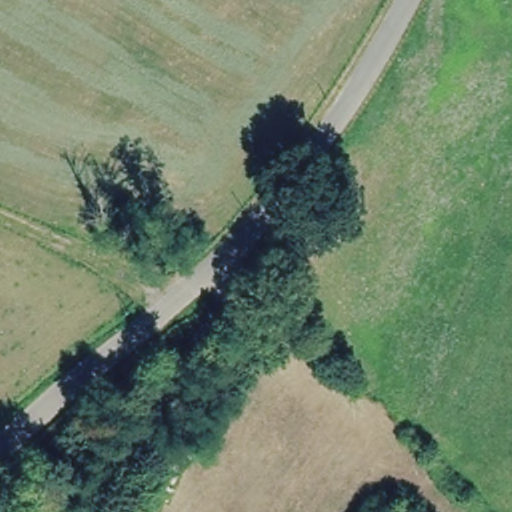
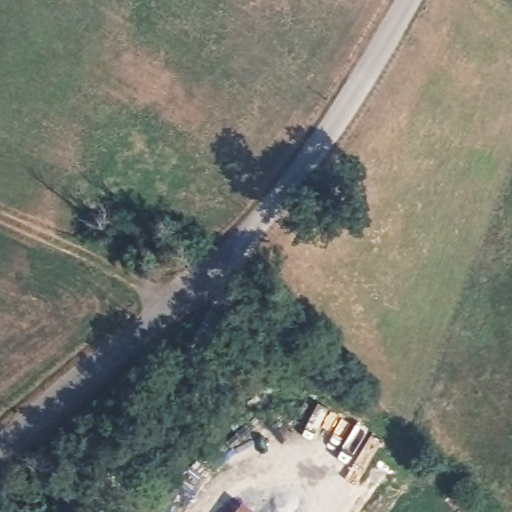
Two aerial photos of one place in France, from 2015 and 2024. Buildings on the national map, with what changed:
new [(255,512),(234,512),(241,501),(255,512)]

